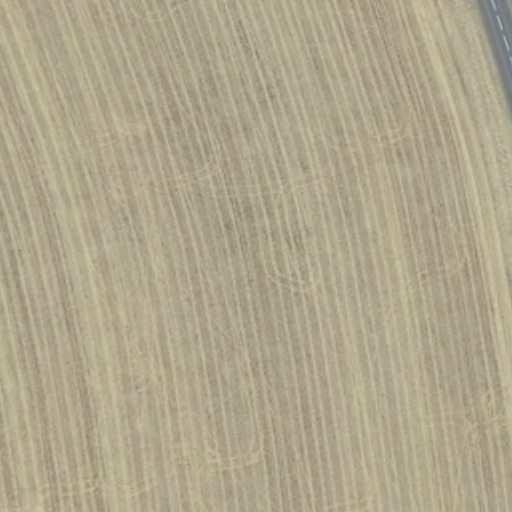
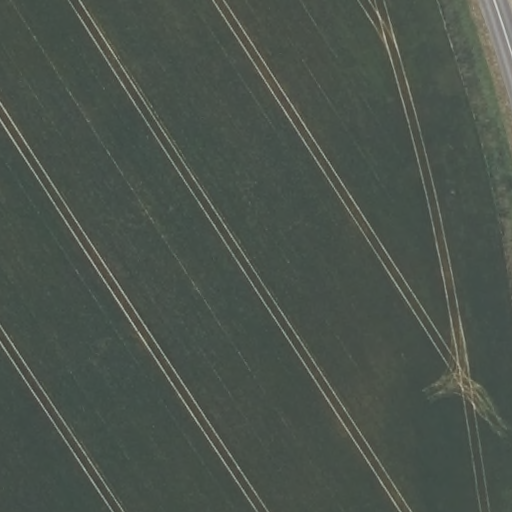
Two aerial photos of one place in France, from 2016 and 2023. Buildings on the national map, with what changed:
[]

